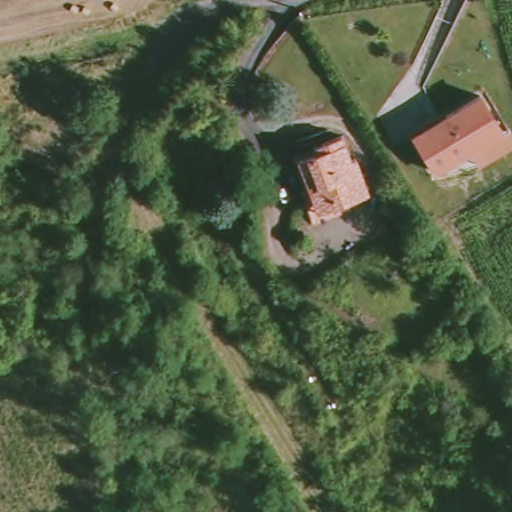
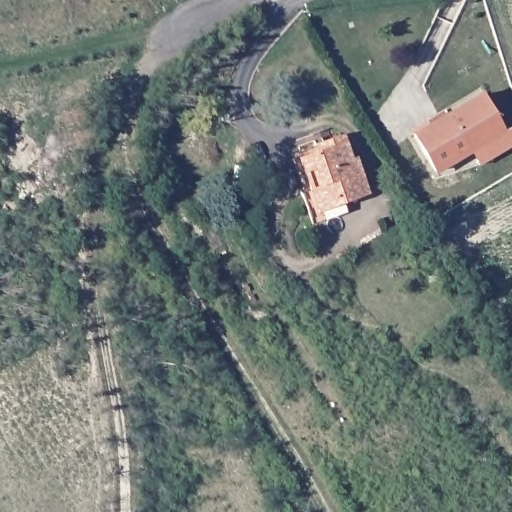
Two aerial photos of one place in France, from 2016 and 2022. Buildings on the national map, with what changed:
unchanged [(420,141),(486,101),(508,138),(442,178),(420,141)]
unchanged [(301,192),(305,191),(293,160),(298,158),(317,151),(314,145),(341,135),(350,159),(355,158),(368,194),(350,201),(310,216),(301,192)]

